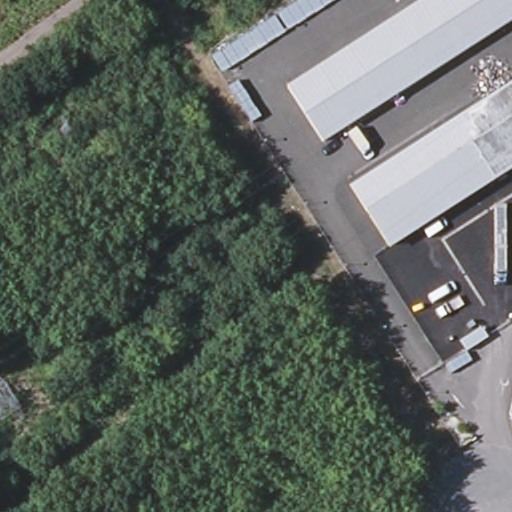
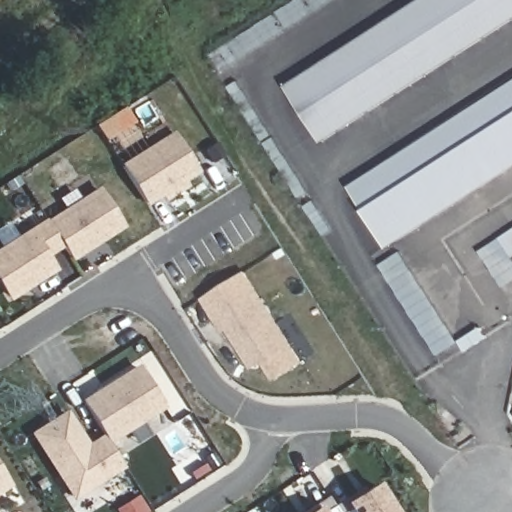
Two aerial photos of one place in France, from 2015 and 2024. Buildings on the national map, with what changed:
unchanged [(287,86),(419,0),(512,0),(512,21),(323,143),(287,86)]
unchanged [(390,248),(351,188),(512,84),(512,169),(390,248)]
new [(164,198),(160,193),(144,203),(120,167),(171,135),(194,172),(180,181),(182,186),(164,198)]
new [(98,192),(120,226),(69,259),(60,245),(47,224),(98,192)]
new [(47,224),(60,245),(44,255),(52,269),(9,297),(0,283),(0,252),(46,222),(47,224)]
new [(512,231),(512,281),(503,287),(480,252),(505,236),(512,231)]
new [(458,341),(438,354),(381,266),(401,253),(458,341)]
new [(288,344),(301,363),(272,381),(260,363),(253,366),(228,327),(224,329),(215,315),(204,301),(245,274),(254,290),(288,344)]
new [(160,407),(106,442),(81,403),(135,368),(160,407)]
new [(72,497),(32,435),(64,414),(85,448),(102,437),(121,466),(72,497)]
new [(0,489),(0,474),(7,485),(0,489)]
new [(332,507),(362,488),(365,493),(347,504),(375,487),(391,512),(302,512),(326,497),(332,507)]

